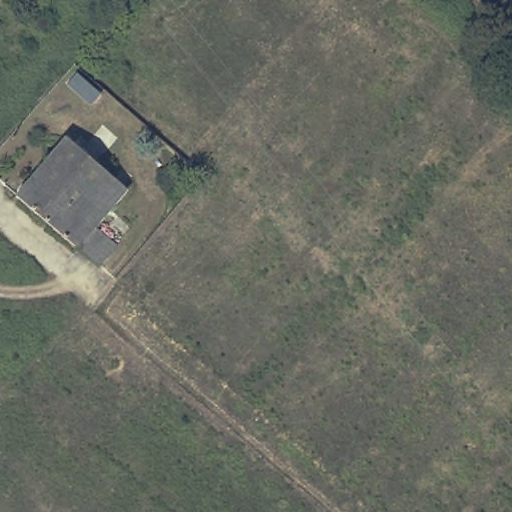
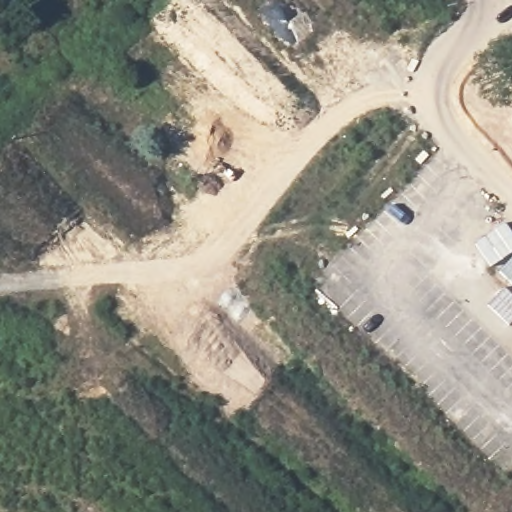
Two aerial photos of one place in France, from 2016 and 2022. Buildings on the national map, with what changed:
demolished [(105,267),(21,196),(72,137),(132,190),(100,228),(122,247),(105,267)]

